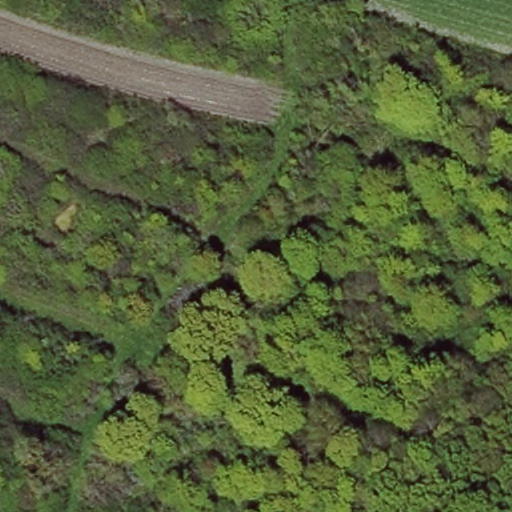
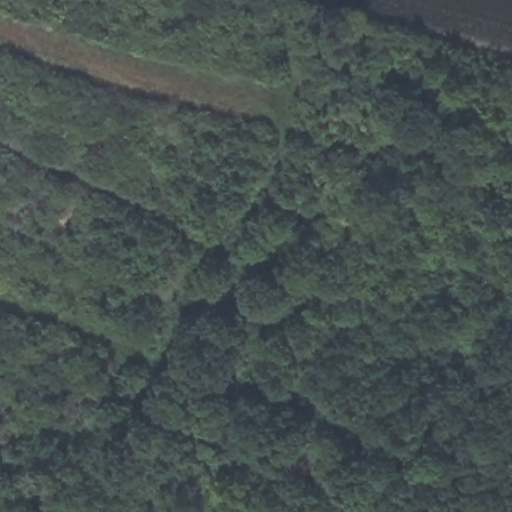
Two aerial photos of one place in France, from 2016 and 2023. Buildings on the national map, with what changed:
[]

